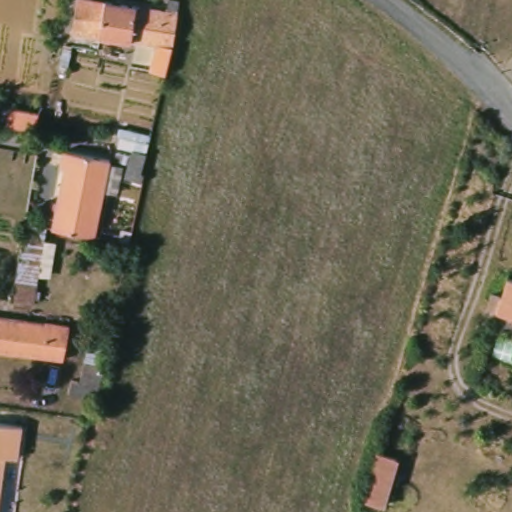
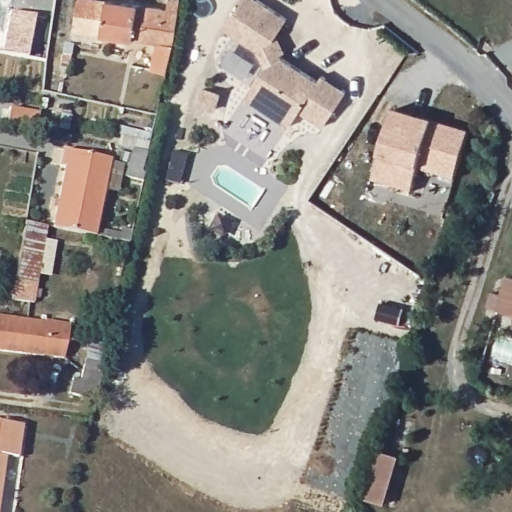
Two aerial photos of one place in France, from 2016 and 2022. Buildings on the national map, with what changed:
unchanged [(153,69),(156,42),(76,32),(80,0),(94,0),(170,9),(172,0),(182,0),(174,50),(169,71),(153,69)]
new [(277,35),(284,52),(280,54),(282,57),(318,81),(321,75),(346,91),(323,126),(300,112),(289,127),(244,97),(264,67),(254,50),(223,29),(242,0),(259,0),(287,19),(277,35)]
new [(11,106),(40,112),(36,130),(7,124),(11,106)]
new [(394,111),(470,131),(456,177),(420,167),(413,190),(374,179),(394,111)]
unchanged [(124,176),(111,174),(113,164),(126,166),(128,162),(114,160),(115,154),(116,150),(148,156),(146,159),(145,166),(141,187),(123,183),(124,176)]
unchanged [(94,251),(53,245),(62,186),(58,185),(60,172),(60,167),(106,174),(105,180),(94,251)]
unchanged [(49,244),(36,303),(12,298),(24,239),(49,244)]
unchanged [(501,310),(491,307),(495,292),(506,296),(512,277),(512,313),(501,310)]
unchanged [(70,328),(70,332),(66,362),(0,354),(0,319),(18,322),(70,328)]
unchanged [(72,397),(75,384),(85,385),(88,365),(91,349),(93,335),(99,336),(101,328),(111,330),(105,358),(103,367),(108,367),(99,401),(72,397)]
unchanged [(2,512),(0,512),(0,421),(15,422),(2,512)]
unchanged [(379,453),(398,459),(383,506),(364,501),(379,453)]

